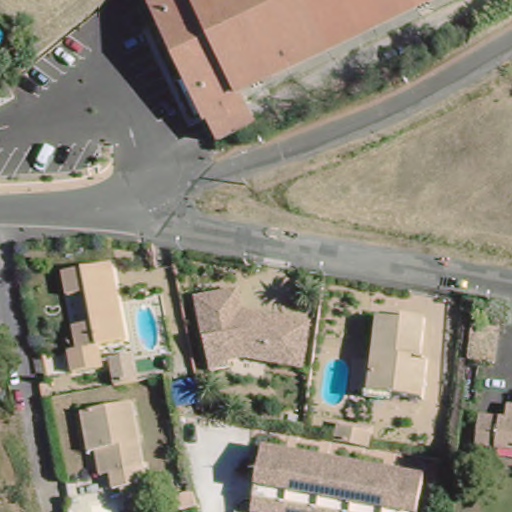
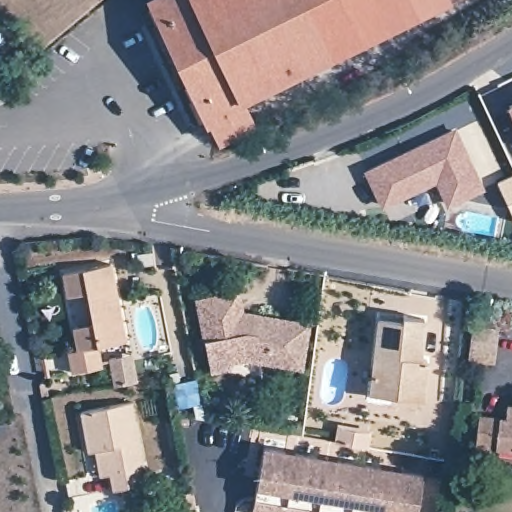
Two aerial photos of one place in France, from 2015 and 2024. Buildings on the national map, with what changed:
unchanged [(378,32),(279,80),(244,97),(246,103),(256,123),(222,139),(212,119),(207,121),(187,78),(150,0),(444,0),(378,32)]
new [(507,107),(512,105),(512,117),(507,107)]
new [(436,184),(381,209),(364,171),(456,128),(485,192),(446,209),(436,184)]
new [(499,182),(512,176),(512,213),(499,182)]
unchanged [(66,297),(63,274),(112,265),(127,342),(99,348),(102,369),(72,374),(69,353),(77,352),(73,328),(95,324),(92,314),(87,315),(84,305),(89,303),(87,293),(66,297)]
unchanged [(231,374),(211,377),(197,304),(239,296),(242,317),(307,329),(301,375),(246,364),(230,367),(231,374)]
unchanged [(353,362),(374,365),(380,321),(380,315),(403,318),(426,320),(421,360),(430,361),(424,401),(371,395),(351,391),(353,362)]
unchanged [(468,362),(473,325),(499,330),(495,364),(468,362)]
new [(129,355),(134,382),(112,386),(107,359),(129,355)]
unchanged [(473,436),(475,407),(503,410),(504,397),(512,398),(512,441),(492,439),(473,436)]
unchanged [(180,404),(200,407),(197,418),(177,415),(180,404)]
unchanged [(96,458),(89,459),(81,418),(132,408),(148,489),(114,496),(111,480),(99,483),(96,458)]
unchanged [(339,424),(373,430),(369,449),(336,443),(339,424)]
unchanged [(416,472),(412,512),(246,512),(259,446),(416,472)]
unchanged [(193,492),(196,508),(172,512),(163,512),(160,499),(193,492)]

